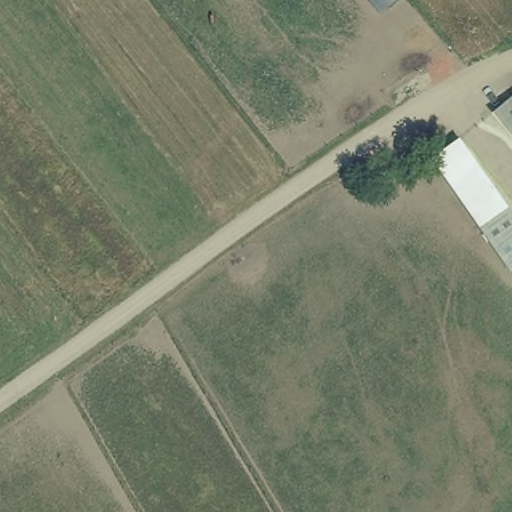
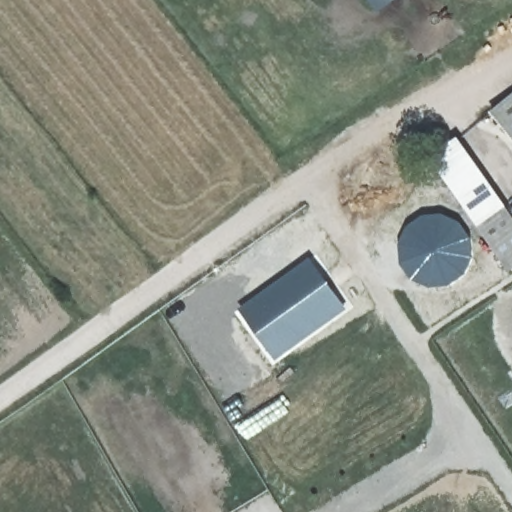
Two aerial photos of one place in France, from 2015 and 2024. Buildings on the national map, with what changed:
unchanged [(370,0),(397,0),(381,13),(370,0)]
new [(487,117),(512,97),(512,108),(491,124),(487,117)]
unchanged [(512,108),(512,150),(491,124),(512,108)]
unchanged [(479,231),(431,158),(461,137),(510,207),(479,231)]
new [(510,273),(479,231),(510,207),(512,210),(512,272),(510,273)]
new [(311,254),(352,308),(274,363),(236,309),(311,254)]

